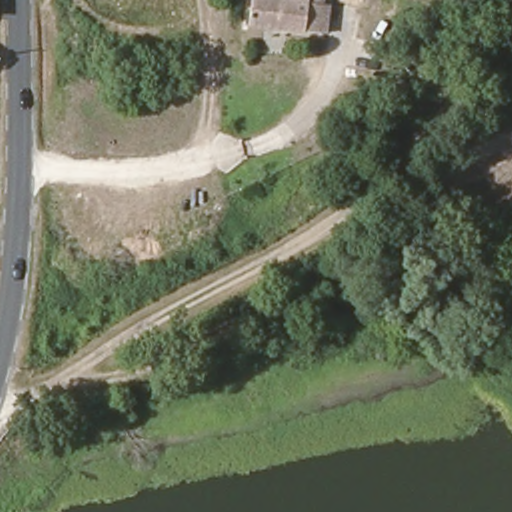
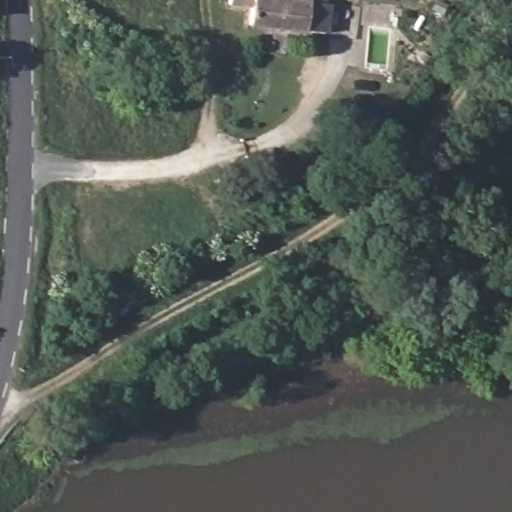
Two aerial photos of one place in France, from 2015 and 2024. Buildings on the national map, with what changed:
unchanged [(253,0),(324,0),(323,3),(329,3),(329,32),(252,26),(253,0)]
unchanged [(406,95),(396,84),(407,72),(420,84),(406,95)]

